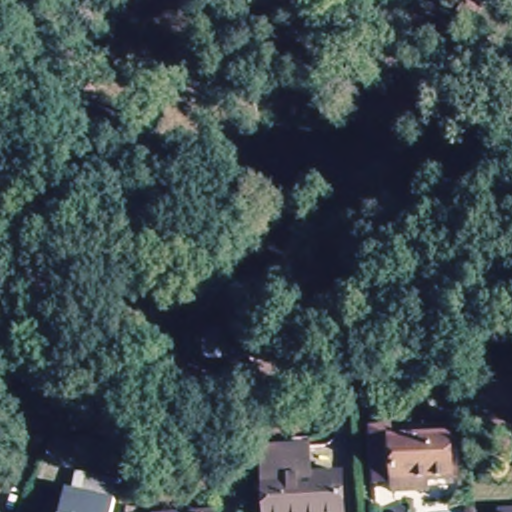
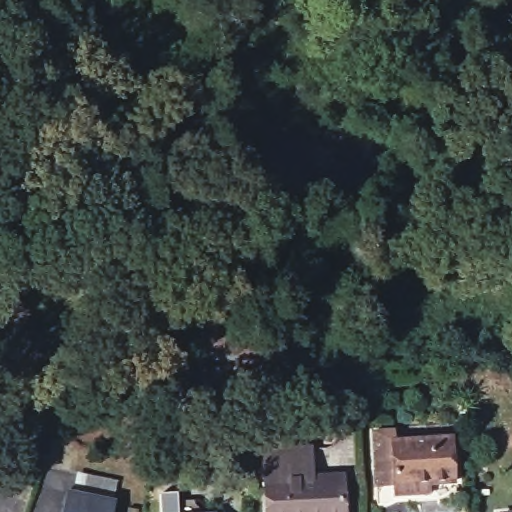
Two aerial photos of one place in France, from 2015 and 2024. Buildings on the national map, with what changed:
unchanged [(301,362),(220,361),(220,332),(244,332),(245,337),(302,338),(301,362)]
unchanged [(416,489),(396,491),(395,479),(377,481),(376,473),(374,429),(392,428),(392,438),(451,434),(454,478),(428,480),(429,489),(416,489)]
unchanged [(260,447),(305,444),(306,474),(335,472),(337,512),(262,512),(260,447)]
unchanged [(62,492),(69,493),(72,474),(112,482),(109,501),(112,502),(110,512),(58,512),(62,492)]
unchanged [(214,511),(214,512),(200,512),(214,511)]

